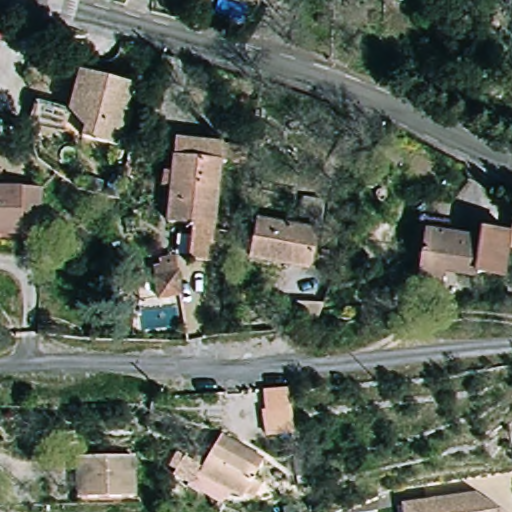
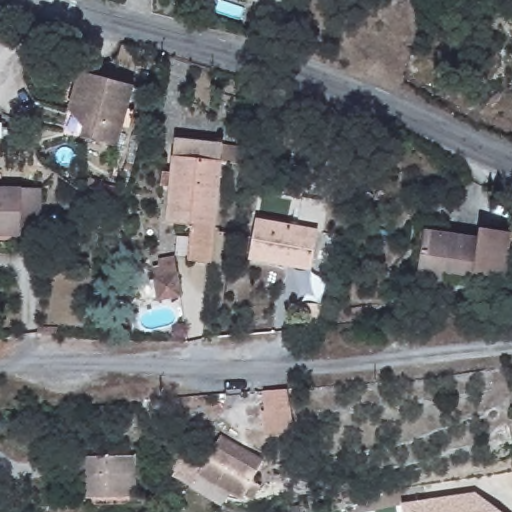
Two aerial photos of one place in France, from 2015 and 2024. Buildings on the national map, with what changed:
unchanged [(139,90),(123,148),(35,122),(42,99),(75,109),(85,73),(139,90)]
unchanged [(213,232),(209,267),(188,264),(192,227),(168,223),(177,141),(223,148),(213,232)]
unchanged [(47,190),(43,225),(21,223),(20,238),(0,237),(0,186),(47,190)]
unchanged [(320,190),(310,268),(251,260),(256,218),(295,224),(299,187),(320,190)]
unchanged [(475,282),(442,277),(441,285),(416,281),(424,225),(449,229),(448,238),(479,243),(481,234),(511,238),(512,232),(512,257),(509,256),(507,282),(475,277),(475,282)]
unchanged [(177,271),(179,293),(153,298),(151,275),(177,271)]
unchanged [(330,324),(308,326),(312,300),(336,300),(330,324)]
unchanged [(287,390),(293,410),(265,414),(263,393),(287,390)]
unchanged [(196,484),(207,468),(203,465),(215,449),(228,429),(268,458),(256,477),(262,482),(254,494),(248,489),(245,494),(236,491),(227,504),(196,484)]
unchanged [(124,502),(88,503),(89,480),(79,480),(79,462),(131,460),(138,461),(140,490),(141,501),(124,502)]
unchanged [(427,500),(476,492),(503,512),(406,512),(405,504),(427,500)]

